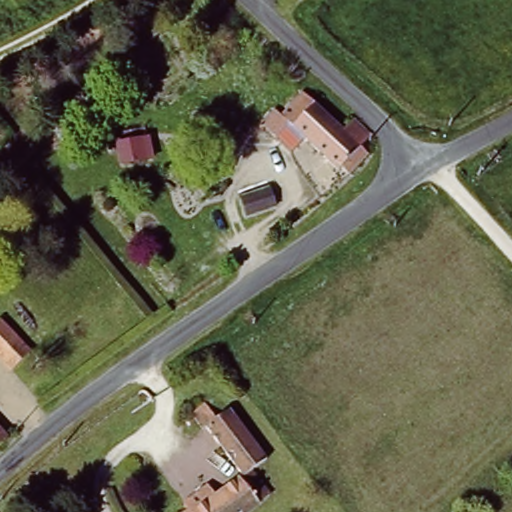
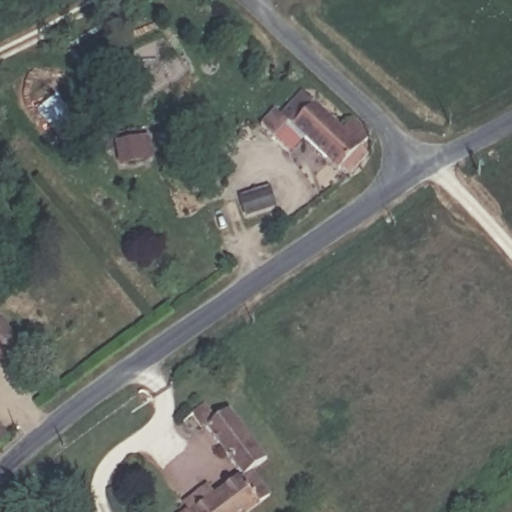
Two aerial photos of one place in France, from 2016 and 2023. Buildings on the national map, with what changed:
unchanged [(305,95),(326,114),(334,120),(345,130),(352,122),(355,117),(357,116),(377,134),(373,137),(368,142),(365,146),(371,152),(361,164),(355,171),(353,171),(347,165),(343,168),(293,123),(280,136),(278,134),(265,122),(267,120),(278,110),(280,112),(286,117),(297,105),(305,95)]
unchanged [(154,159),(120,165),(115,142),(150,137),(154,159)]
unchanged [(34,356),(17,373),(15,375),(0,361),(0,322),(34,356)]
unchanged [(267,452),(252,463),(270,487),(238,512),(181,512),(190,506),(192,509),(245,470),(205,422),(227,405),(267,452)]
unchanged [(0,438),(0,426),(6,432),(0,438)]

